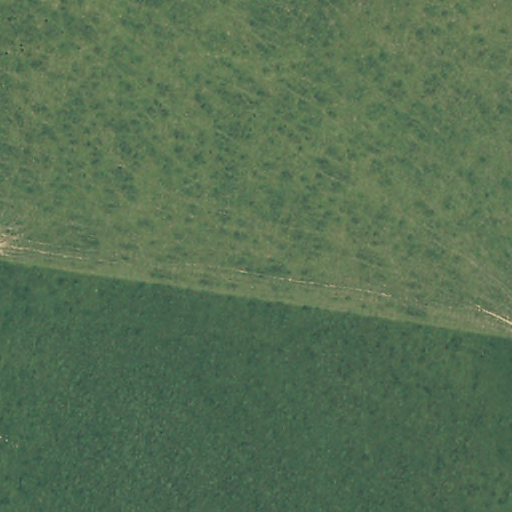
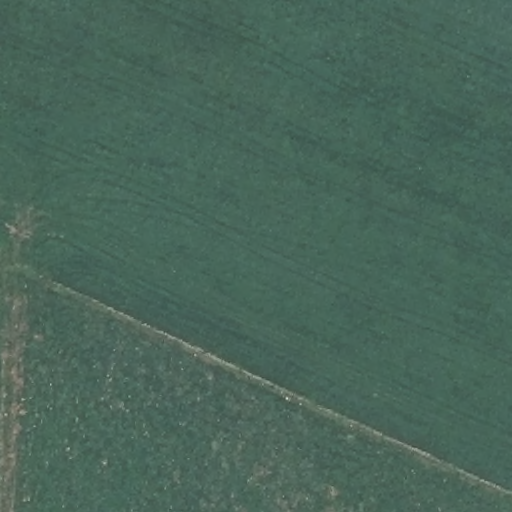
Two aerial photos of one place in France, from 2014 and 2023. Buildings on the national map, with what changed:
[]

